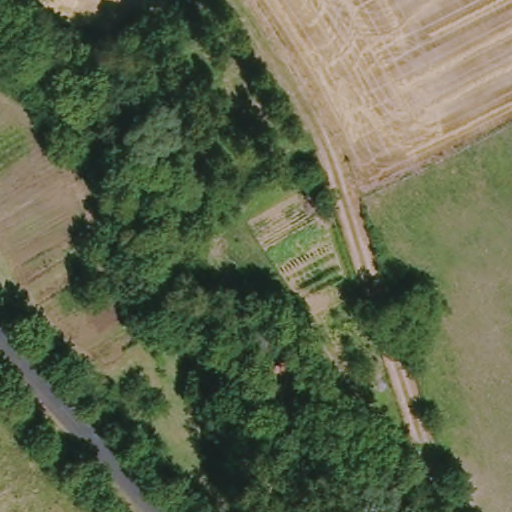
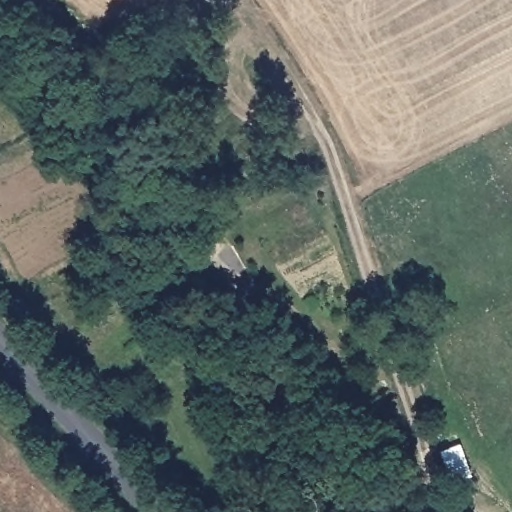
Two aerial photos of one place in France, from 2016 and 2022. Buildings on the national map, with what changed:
[]

